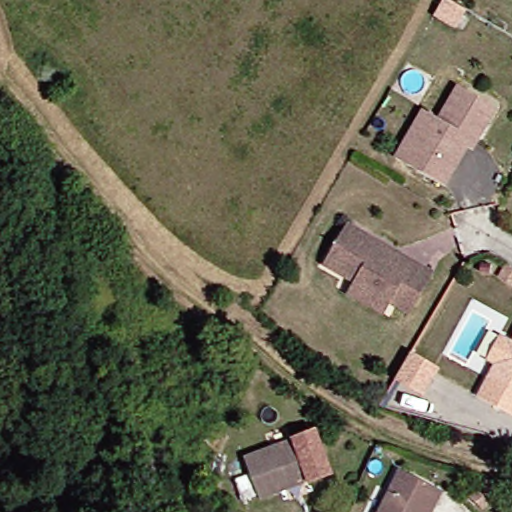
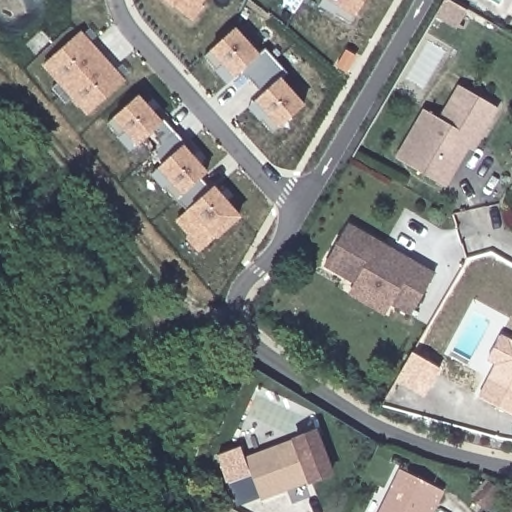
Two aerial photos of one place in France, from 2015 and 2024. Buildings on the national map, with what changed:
new [(164,0),(208,0),(189,22),(164,0)]
new [(332,0),(365,0),(355,16),(332,0)]
unchanged [(457,29),(436,16),(446,0),(447,0),(467,12),(457,29)]
new [(261,53),(235,77),(211,49),(238,26),(261,53)]
new [(127,81),(89,117),(44,65),(82,29),(127,81)]
new [(307,104),(281,129),(256,99),(282,76),(307,104)]
unchanged [(458,149),(434,188),(397,165),(386,159),(416,111),(426,118),(431,121),(451,88),(488,111),(468,144),(463,152),(458,149)]
new [(165,123),(140,146),(115,117),(140,94),(165,123)]
new [(211,173),(185,196),(159,166),(185,142),(211,173)]
new [(244,216),(205,252),(175,221),(216,184),(244,216)]
unchanged [(344,296),(350,285),(320,267),(343,226),(429,276),(405,317),(385,305),(379,316),(344,296)]
unchanged [(472,398),(490,367),(482,363),(496,336),(509,342),(512,337),(512,418),(511,419),(472,398)]
unchanged [(440,371),(423,398),(396,382),(412,355),(440,371)]
unchanged [(306,434),(322,474),(298,483),(251,501),(236,460),(283,442),(306,434)]
unchanged [(390,476),(408,485),(410,482),(430,492),(434,493),(425,512),(372,512),(390,476)]

